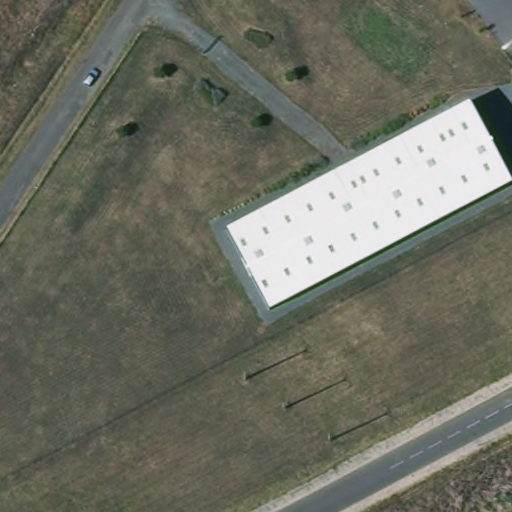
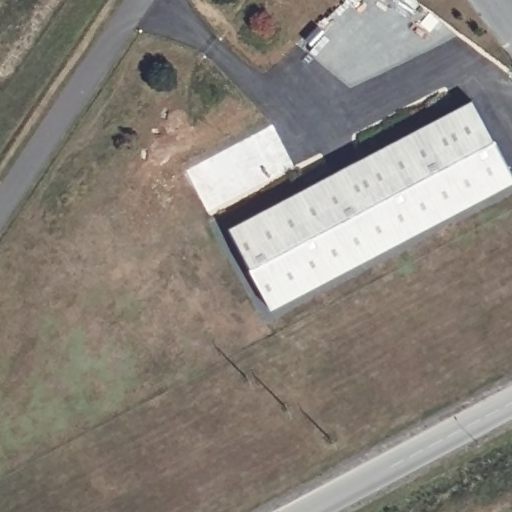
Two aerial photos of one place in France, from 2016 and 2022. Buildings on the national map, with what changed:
unchanged [(228,227),(471,99),(512,180),(512,182),(270,308),(228,227)]

